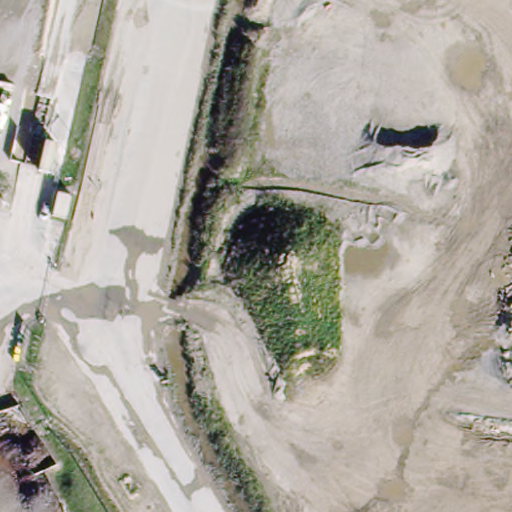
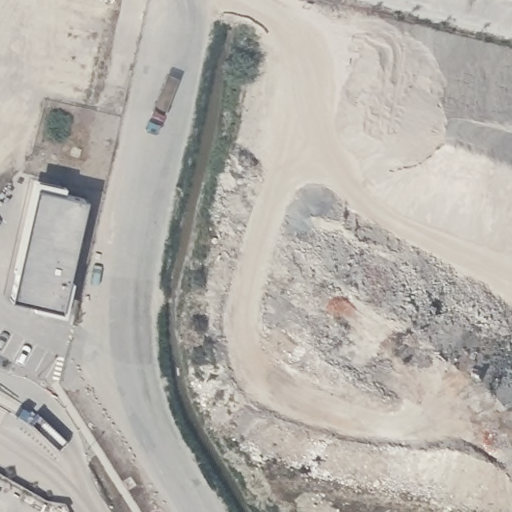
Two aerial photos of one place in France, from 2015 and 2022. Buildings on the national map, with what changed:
demolished [(0,114),(21,119),(11,161),(0,158),(0,114)]
unchanged [(37,169),(44,141),(56,143),(50,172),(37,169)]
new [(87,203),(65,316),(15,306),(42,193),(87,203)]

